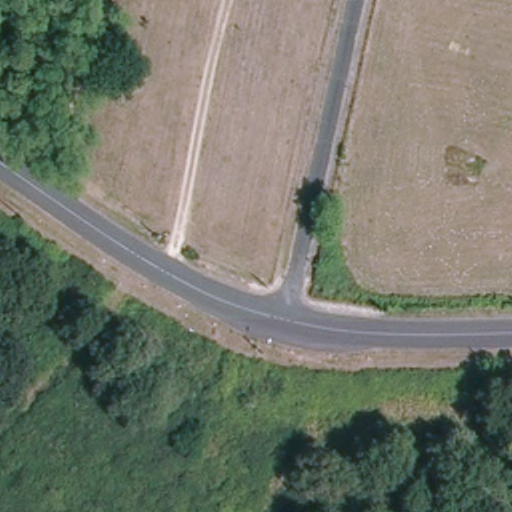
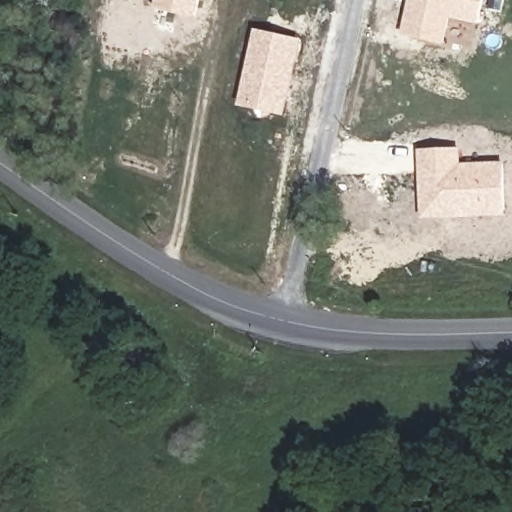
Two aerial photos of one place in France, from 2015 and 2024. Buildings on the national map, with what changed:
new [(198,0),(195,19),(155,10),(157,0),(198,0)]
new [(403,36),(411,0),(486,0),(481,25),(452,20),(446,45),(403,36)]
new [(239,106),(256,30),(302,40),(286,116),(239,106)]
new [(419,150),(462,148),(463,165),(506,162),(508,216),(423,220),(419,150)]

